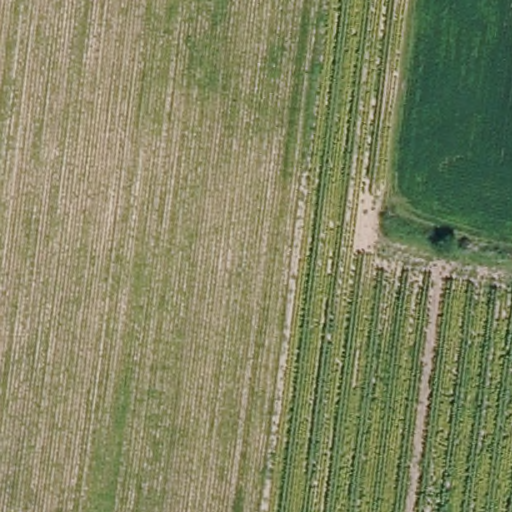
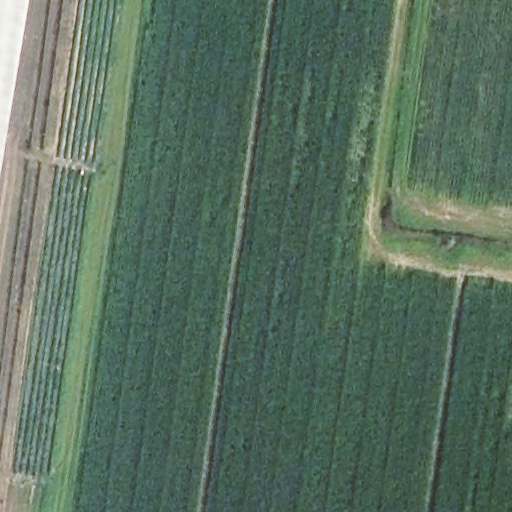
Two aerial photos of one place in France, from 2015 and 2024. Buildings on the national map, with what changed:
new [(27,0),(0,165),(0,0),(27,0)]

